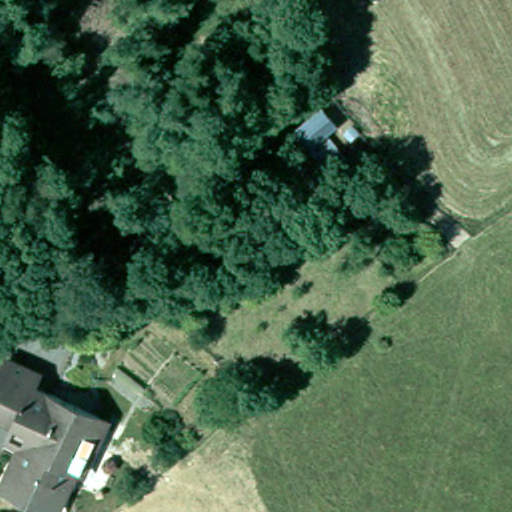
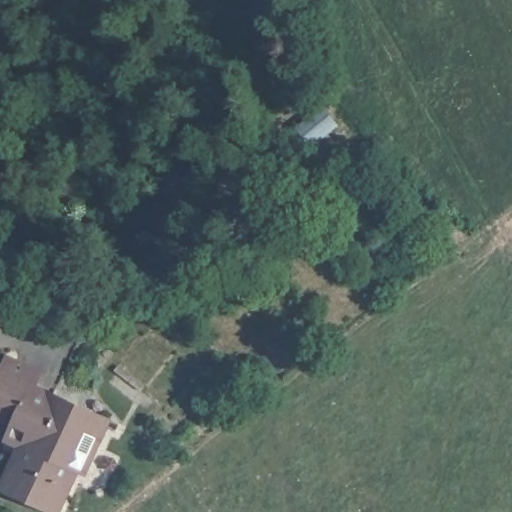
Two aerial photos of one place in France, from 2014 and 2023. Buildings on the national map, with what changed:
unchanged [(297,123),(323,103),(337,121),(325,131),(347,153),(332,166),(297,123)]
unchanged [(15,419),(0,412),(0,371),(8,354),(40,369),(35,381),(108,415),(83,468),(77,465),(57,507),(3,481),(15,457),(21,460),(28,444),(8,435),(15,419)]

